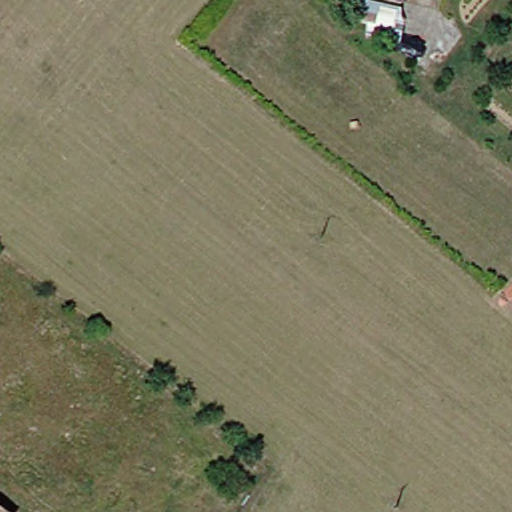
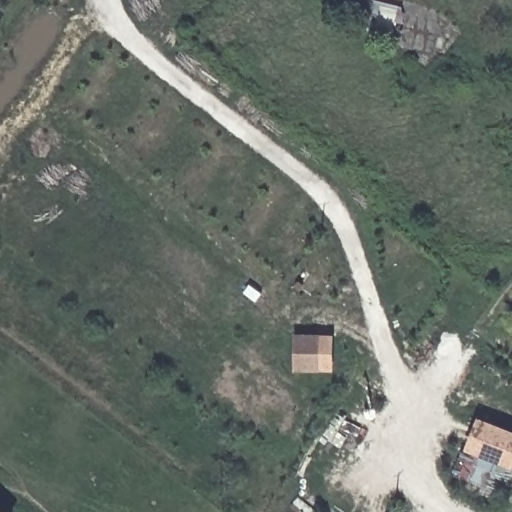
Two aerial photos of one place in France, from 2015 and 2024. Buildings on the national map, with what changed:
new [(333,372),(293,371),(294,334),(334,335),(333,372)]
new [(512,431),(512,469),(465,451),(478,418),(512,431)]
demolished [(0,512),(0,507),(9,512),(0,512)]

